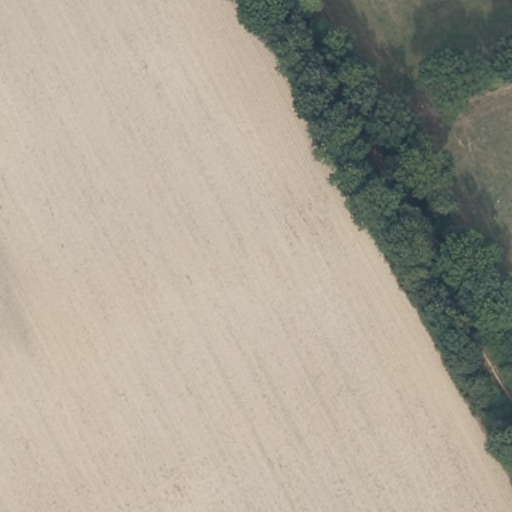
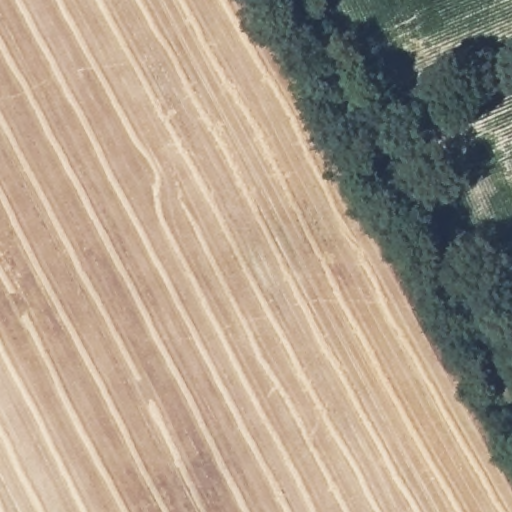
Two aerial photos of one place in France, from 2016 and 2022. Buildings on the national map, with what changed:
[]

